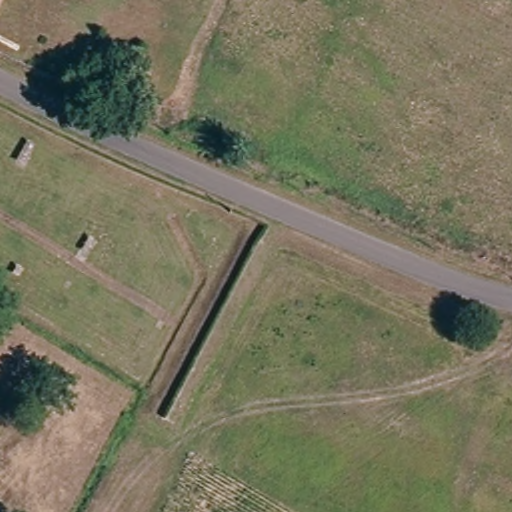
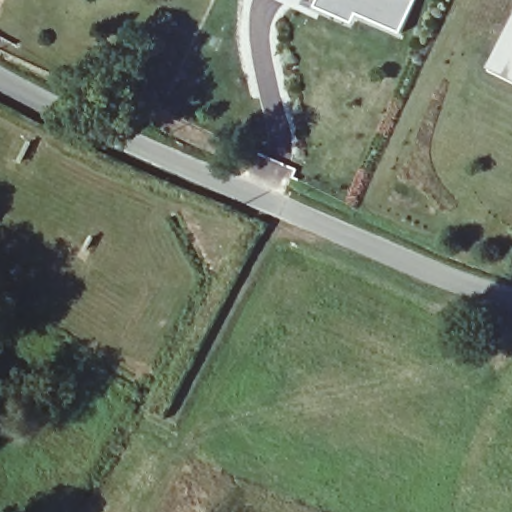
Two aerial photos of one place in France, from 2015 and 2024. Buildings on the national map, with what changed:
new [(403,34),(360,15),(353,29),(315,13),(321,0),(418,0),(403,34)]
new [(512,29),(512,64),(498,57),(512,29)]

